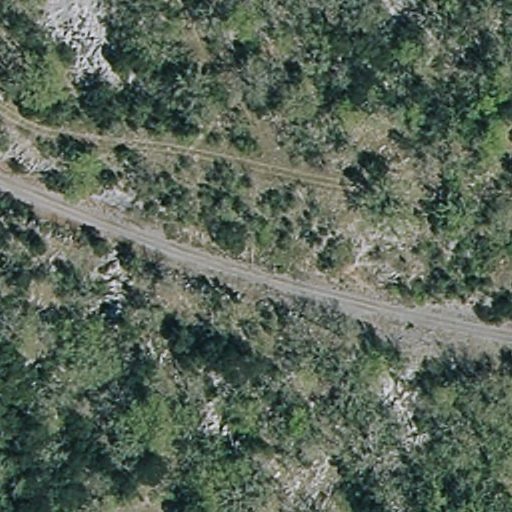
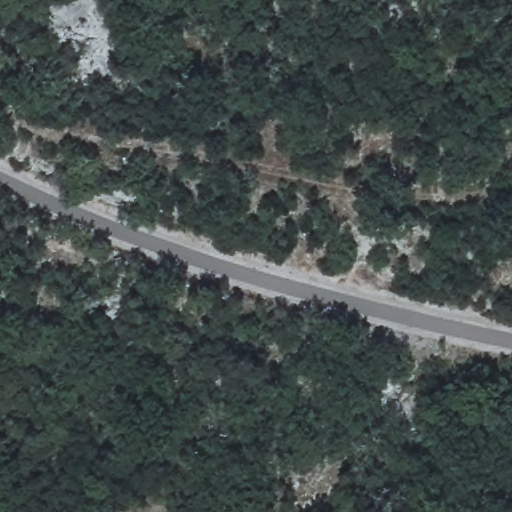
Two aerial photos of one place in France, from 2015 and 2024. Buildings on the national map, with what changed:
[]

